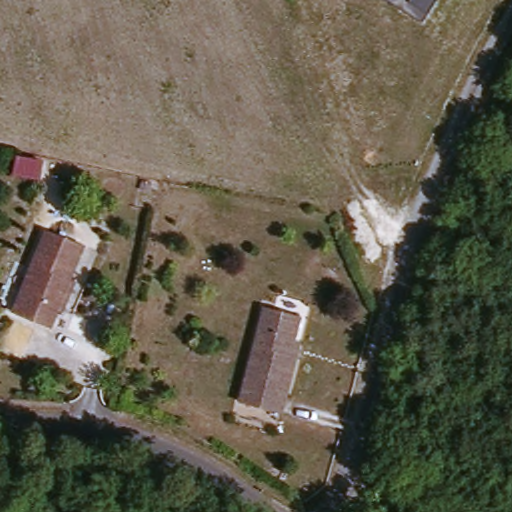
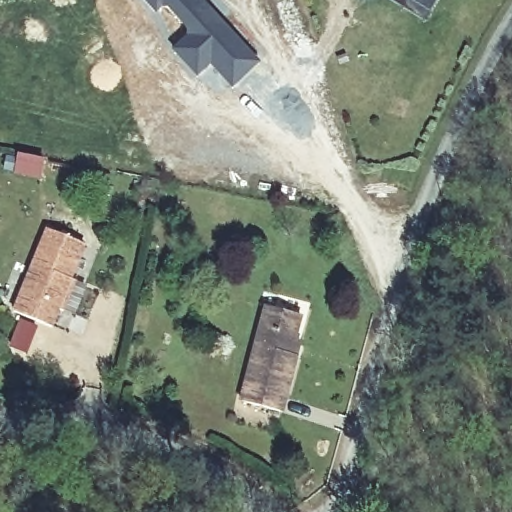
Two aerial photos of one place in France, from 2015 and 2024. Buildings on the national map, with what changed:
new [(262,63),(236,87),(215,63),(200,72),(177,48),(192,34),(192,28),(173,6),(166,5),(161,10),(152,0),(206,0),(262,63)]
unchanged [(428,21),(395,0),(441,0),(428,21)]
unchanged [(66,313),(62,311),(54,329),(17,314),(49,231),(87,246),(73,283),(77,284),(72,296),(66,313)]
unchanged [(245,405),(269,309),(304,317),(299,343),(304,344),(301,359),(286,415),(245,405)]

